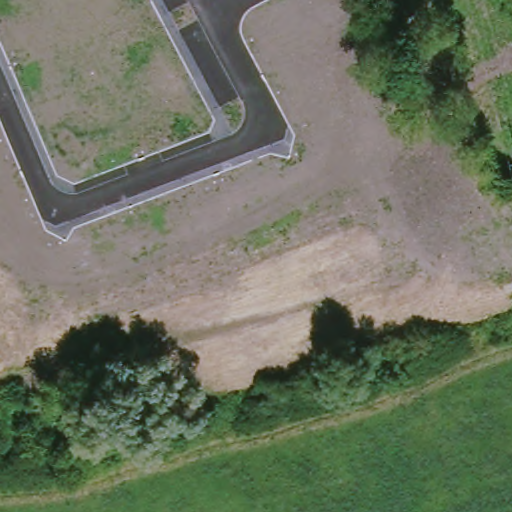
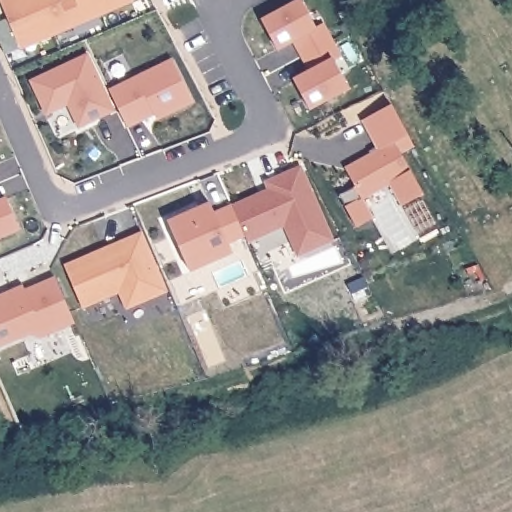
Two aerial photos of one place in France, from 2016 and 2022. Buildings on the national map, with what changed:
new [(20,49),(7,55),(0,41),(0,23),(9,20),(0,1),(0,0),(137,0),(134,1),(20,49)]
new [(315,28),(322,24),(339,56),(332,60),(347,88),(309,109),(293,81),(310,71),(293,40),(277,49),(261,21),(300,0),(315,28)]
new [(87,55),(112,111),(79,126),(68,104),(46,114),(31,81),(87,55)]
new [(172,60),(192,101),(163,116),(160,110),(127,127),(109,91),(172,60)]
new [(392,107),(414,147),(402,154),(410,173),(422,196),(402,205),(392,185),(364,199),(373,219),(357,227),(347,207),(341,197),(356,188),(346,168),(377,151),(362,120),(392,107)]
new [(232,207),(269,190),(266,182),(300,168),(332,240),(298,255),(285,225),(247,242),(232,207)]
new [(19,229),(0,236),(0,201),(6,199),(19,229)]
new [(227,243),(231,252),(189,271),(167,222),(210,204),(214,214),(231,206),(244,235),(227,243)]
new [(103,250),(106,257),(127,248),(124,241),(140,234),(165,291),(127,308),(120,291),(82,307),(65,267),(103,250)]
new [(32,334),(0,347),(0,294),(24,285),(25,289),(55,278),(74,325),(40,337),(32,334)]

